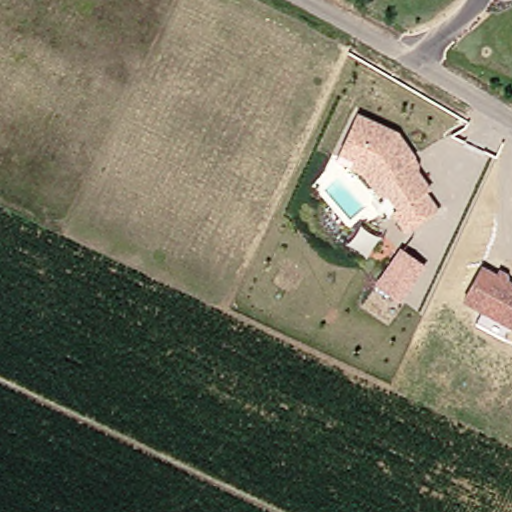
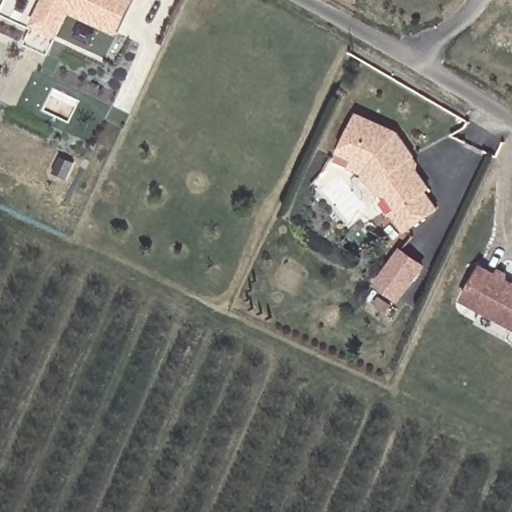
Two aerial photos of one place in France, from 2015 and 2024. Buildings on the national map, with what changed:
new [(22,47),(32,26),(44,0),(130,0),(114,34),(100,28),(67,12),(56,37),(46,58),(22,47)]
unchanged [(335,164),(339,155),(356,117),(396,135),(413,158),(408,162),(428,190),(424,193),(437,211),(406,233),(378,196),(363,176),(335,164)]
unchanged [(427,267),(401,302),(376,283),(401,248),(427,267)]
unchanged [(481,265),(512,282),(512,324),(463,297),(481,265)]

